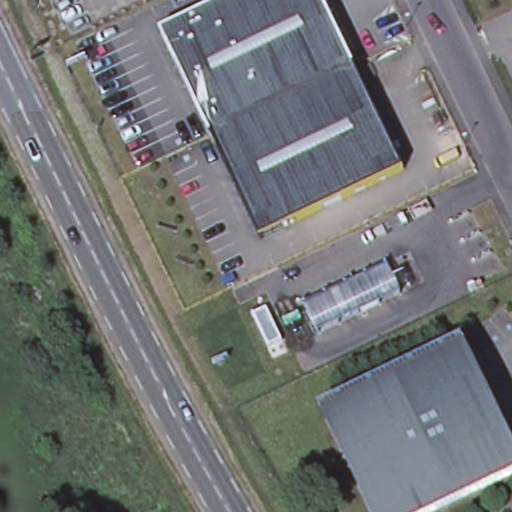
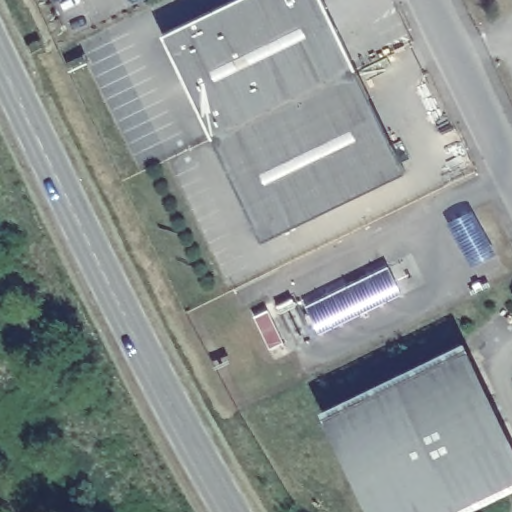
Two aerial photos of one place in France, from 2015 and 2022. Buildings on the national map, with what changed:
unchanged [(319,0),(352,67),(402,170),(258,240),(208,137),(158,34),(228,0),(319,0)]
unchanged [(301,303),(385,262),(399,291),(315,332),(301,303)]
unchanged [(285,345),(271,351),(253,316),(267,310),(285,345)]
unchanged [(461,512),(370,512),(323,415),(463,341),(512,438),(512,488),(461,512)]

